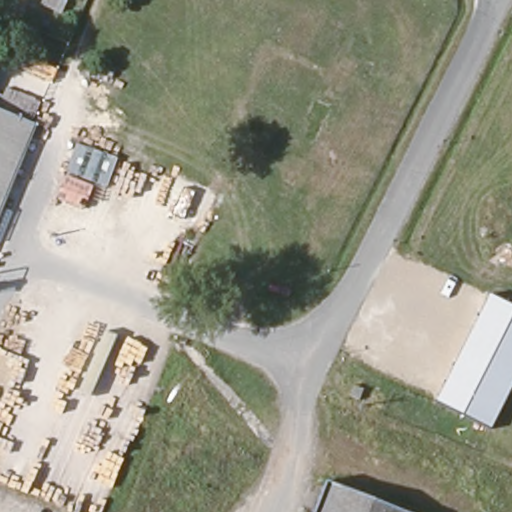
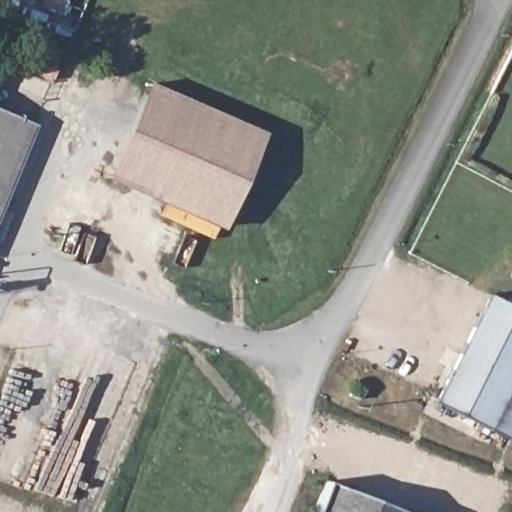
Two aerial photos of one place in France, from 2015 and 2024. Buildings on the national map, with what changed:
unchanged [(57,1),(57,0),(58,0),(57,1)]
new [(222,230),(105,177),(147,81),(264,132),(222,230)]
demolished [(91,134),(74,124),(90,96),(108,105),(91,134)]
unchanged [(0,215),(0,111),(36,126),(0,215)]
unchanged [(436,400),(489,293),(512,305),(512,386),(490,429),(436,400)]
unchanged [(358,382),(353,392),(341,387),(346,377),(358,382)]
new [(512,441),(490,429),(512,386),(512,441)]
unchanged [(320,512),(328,491),(385,512),(320,512)]

